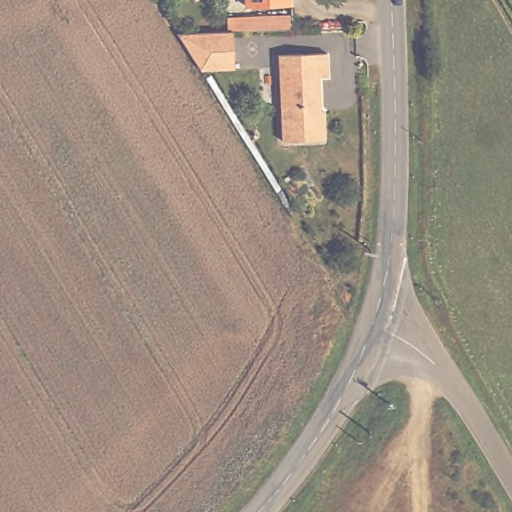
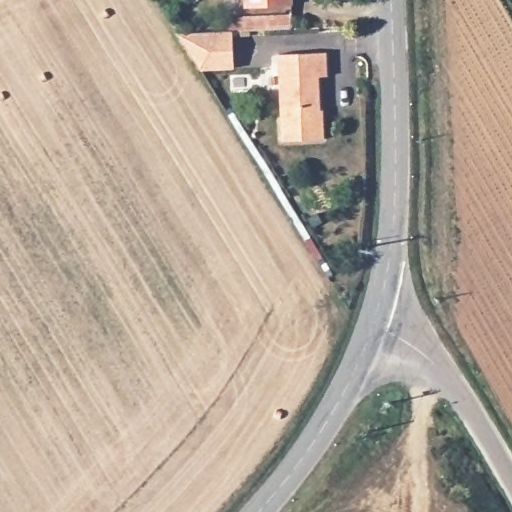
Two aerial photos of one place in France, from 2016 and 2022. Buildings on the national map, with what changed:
unchanged [(246,1),(246,0),(280,0),(246,1)]
unchanged [(233,31),(234,68),(200,70),(177,34),(233,31)]
unchanged [(279,49),(326,47),(327,71),(319,71),(320,96),(317,96),(317,105),(323,105),(324,135),(283,136),(279,49)]

